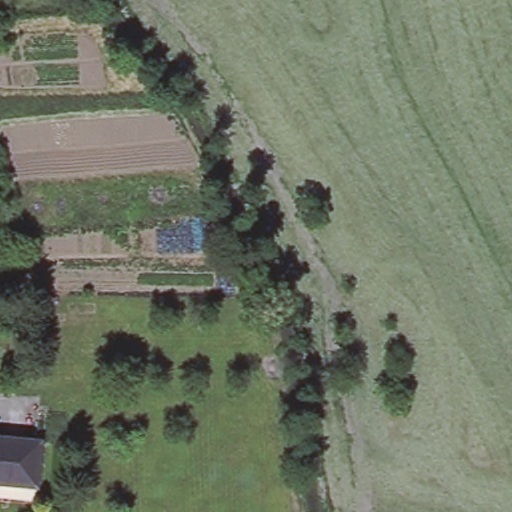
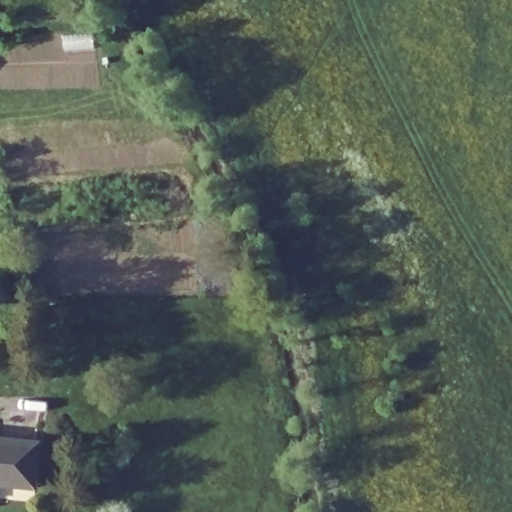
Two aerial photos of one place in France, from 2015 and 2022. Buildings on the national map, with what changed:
unchanged [(36,487),(0,483),(0,438),(40,442),(36,487)]

